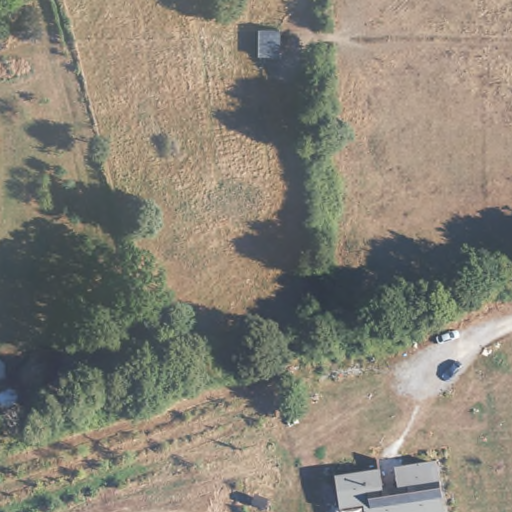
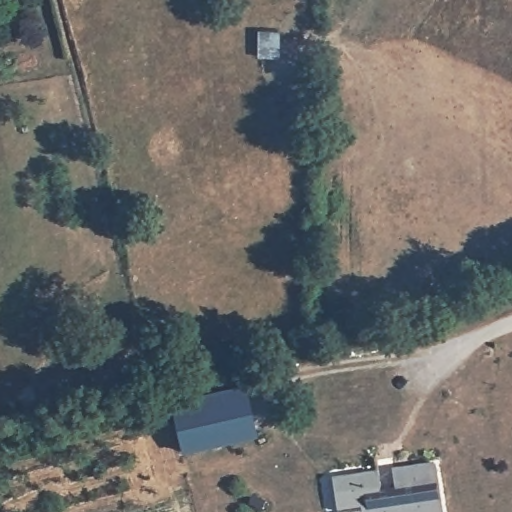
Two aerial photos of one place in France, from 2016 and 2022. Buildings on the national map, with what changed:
new [(180,453),(169,398),(245,383),(257,436),(180,453)]
unchanged [(383,492),(398,490),(395,471),(436,464),(444,512),(365,512),(364,508),(340,512),(336,480),(380,472),(383,492)]

